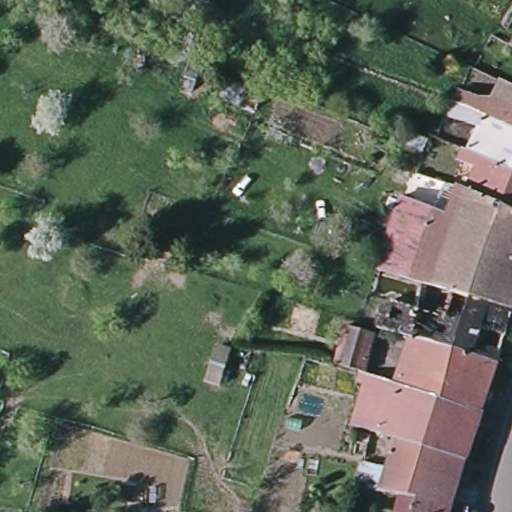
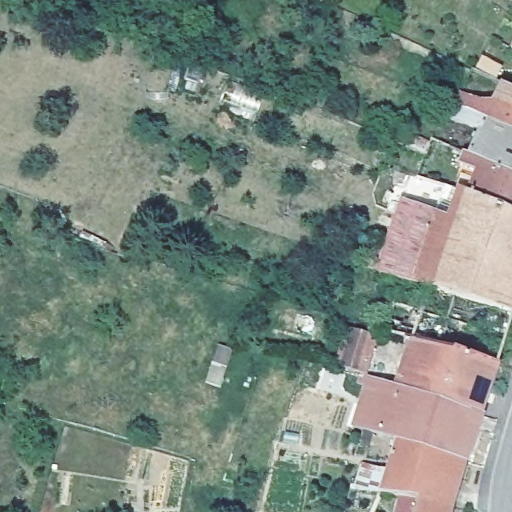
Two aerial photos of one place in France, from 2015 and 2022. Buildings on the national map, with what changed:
unchanged [(471,154),(485,124),(474,127),(458,121),(457,122),(445,117),(450,102),(455,105),(461,92),(481,100),(494,102),(502,85),(512,89),(512,178),(471,155),(471,154)]
unchanged [(404,144),(408,135),(429,143),(424,154),(427,155),(421,167),(389,154),(395,140),(404,144)]
unchanged [(477,173),(460,165),(465,151),(471,154),(471,155),(512,178),(512,216),(469,195),(477,173)]
unchanged [(451,220),(462,191),(469,195),(512,216),(512,268),(444,240),(451,220)]
unchanged [(395,220),(402,199),(451,220),(444,240),(395,220)]
unchanged [(376,272),(395,220),(444,240),(427,287),(427,288),(376,272)]
unchanged [(444,240),(512,268),(512,312),(427,287),(444,240)]
unchanged [(427,287),(512,312),(512,317),(497,365),(411,340),(410,342),(408,341),(374,331),(379,317),(387,320),(392,303),(418,313),(427,288),(427,287)]
unchanged [(347,328),(375,337),(363,376),(361,375),(335,368),(347,328)]
unchanged [(410,342),(411,340),(497,365),(480,415),(395,387),(410,342)]
unchanged [(366,388),(357,385),(361,375),(363,376),(395,387),(480,415),(475,430),(364,393),(366,388)]
unchanged [(352,428),(364,393),(475,430),(464,462),(397,441),(397,443),(361,431),(352,428)]
unchanged [(381,495),(356,490),(362,466),(388,471),(397,443),(397,441),(464,462),(451,504),(449,512),(412,512),(415,500),(381,495)]

